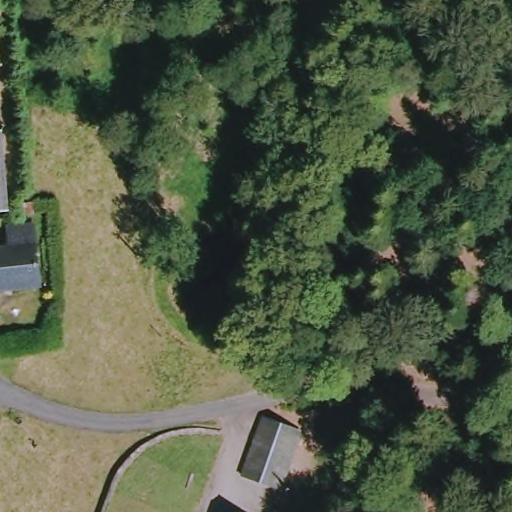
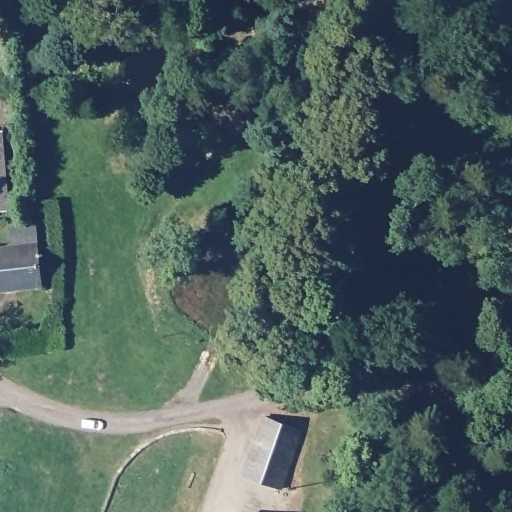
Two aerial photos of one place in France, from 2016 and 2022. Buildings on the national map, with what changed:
unchanged [(15,206),(0,208),(0,132),(7,132),(12,178),(15,206)]
unchanged [(18,255),(17,234),(42,231),(46,290),(0,294),(0,257),(18,255)]
unchanged [(252,476),(271,417),(306,426),(287,487),(252,476)]

